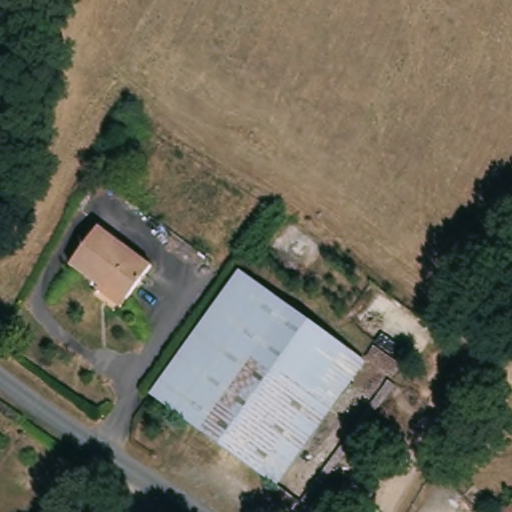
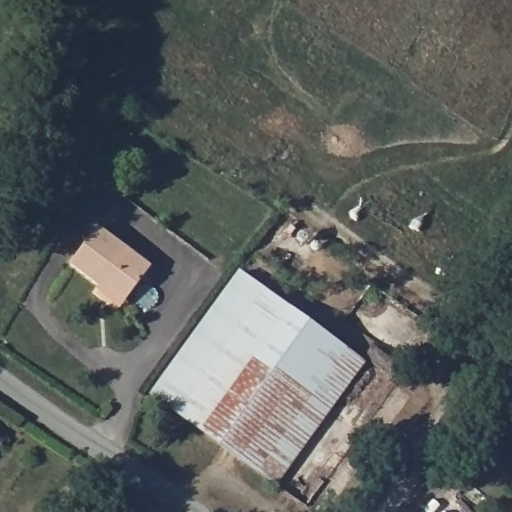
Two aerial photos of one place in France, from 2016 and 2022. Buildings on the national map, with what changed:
unchanged [(126,301),(105,285),(100,289),(71,268),(97,229),(149,268),(126,301)]
unchanged [(238,275),(363,362),(278,486),(220,447),(152,400),(183,356),(238,275)]
unchanged [(0,447),(0,439),(4,441),(0,447)]
unchanged [(512,507),(512,512),(508,512),(507,510),(512,507)]

